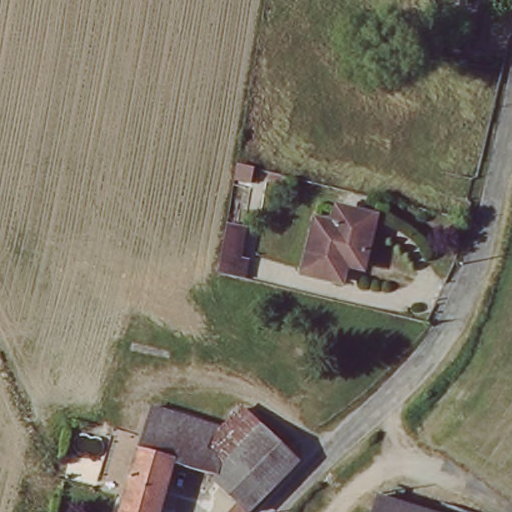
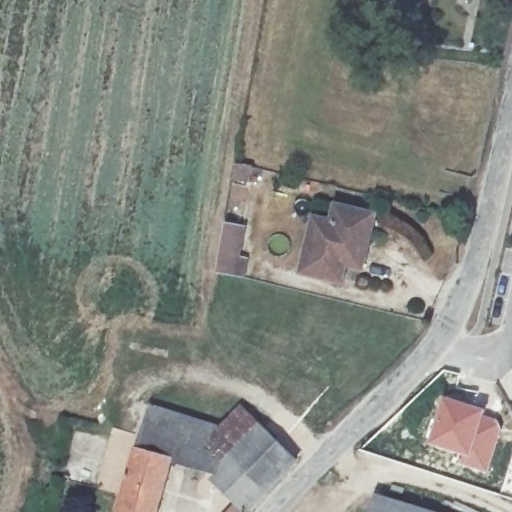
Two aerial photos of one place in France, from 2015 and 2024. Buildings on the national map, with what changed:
unchanged [(323,231),(326,215),(374,224),(368,260),(352,259),(346,288),(295,279),(305,228),(323,231)]
unchanged [(235,271),(222,269),(229,220),(248,224),(244,254),(251,255),(249,274),(235,271)]
new [(445,396),(488,410),(486,414),(471,458),(461,456),(429,445),(445,396)]
unchanged [(209,449),(147,433),(155,402),(226,429),(209,449)]
unchanged [(213,471),(177,462),(142,451),(147,433),(209,449),(226,429),(245,407),(305,458),(260,509),(258,512),(232,512),(245,497),(213,471)]
new [(461,456),(471,458),(486,414),(501,428),(489,473),(459,463),(461,456)]
unchanged [(177,462),(168,496),(132,485),(142,451),(177,462)]
unchanged [(132,485),(168,496),(164,512),(125,512),(132,485)]
unchanged [(375,504),(401,512),(373,512),(375,504)]

